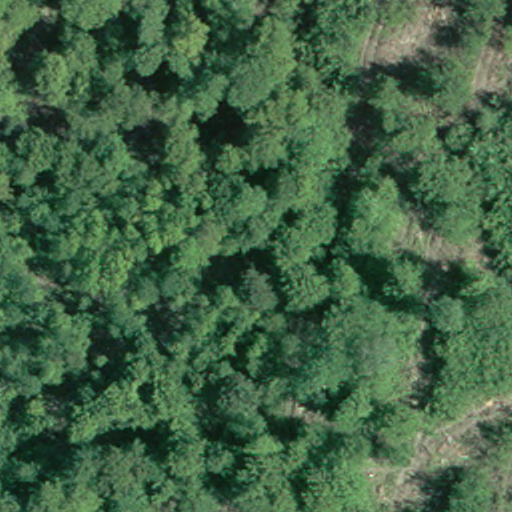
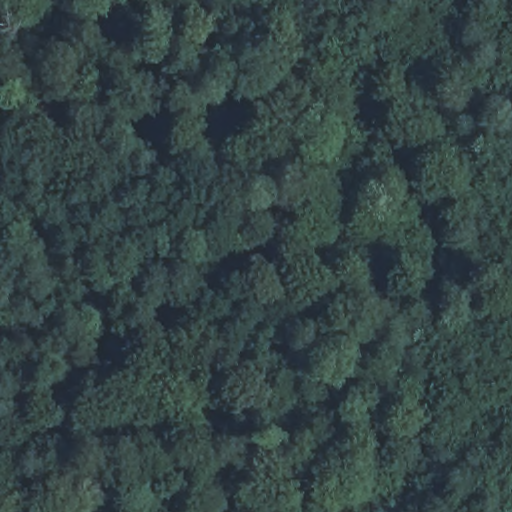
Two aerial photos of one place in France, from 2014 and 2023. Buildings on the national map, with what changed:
[]

